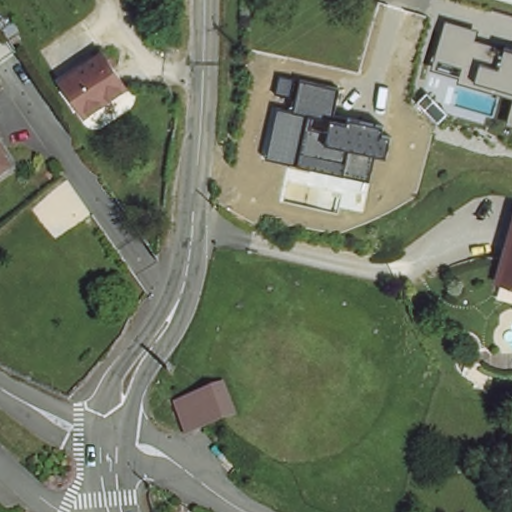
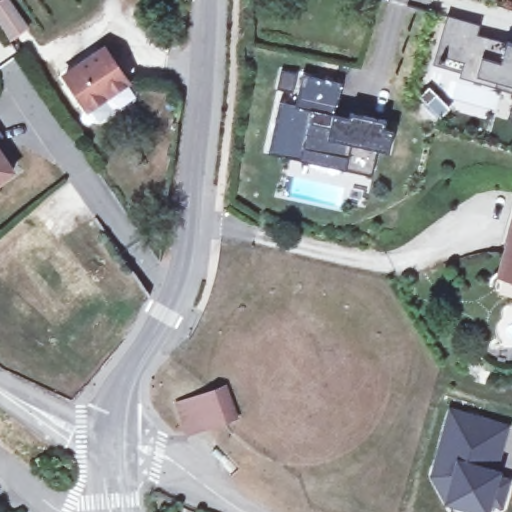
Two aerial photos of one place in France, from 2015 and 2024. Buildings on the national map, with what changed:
unchanged [(460,74),(433,66),(447,18),(480,26),(478,36),(512,45),(512,93),(459,78),(460,74)]
unchanged [(100,42),(123,76),(82,103),(60,69),(100,42)]
unchanged [(268,155),(280,105),(295,108),(298,95),(278,91),(282,73),(341,86),(335,117),(350,120),(350,116),(385,123),(383,131),(392,133),(387,154),(376,151),(370,177),(268,155)]
unchanged [(512,107),(512,122),(508,120),(512,107)]
unchanged [(5,164),(0,168),(0,156),(5,164)]
unchanged [(512,234),(512,283),(498,278),(512,234)]
new [(492,466),(500,468),(488,512),(457,512),(439,506),(445,484),(424,478),(447,408),(503,426),(492,466)]

